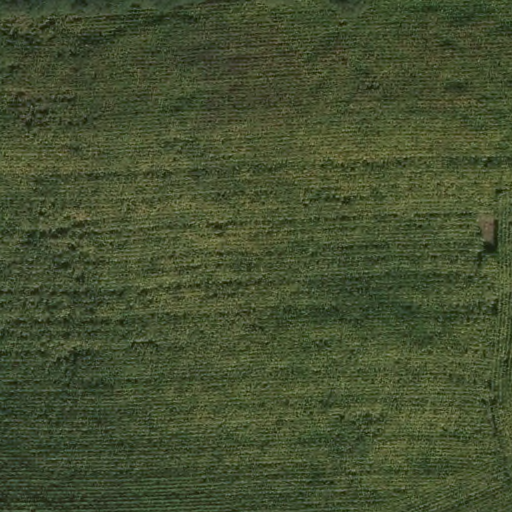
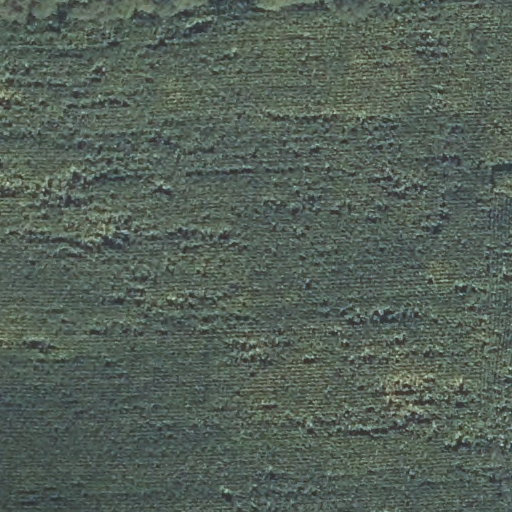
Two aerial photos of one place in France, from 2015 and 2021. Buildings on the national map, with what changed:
[]

